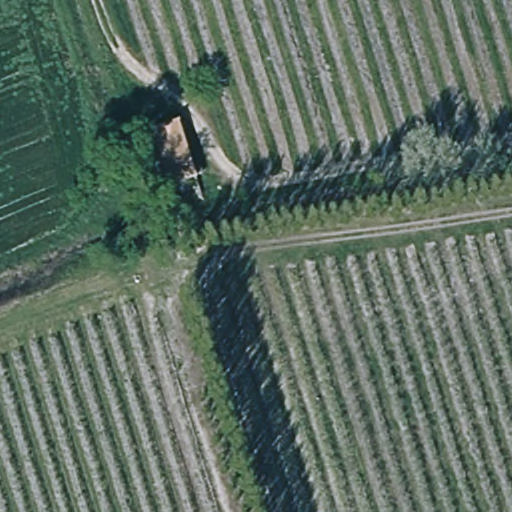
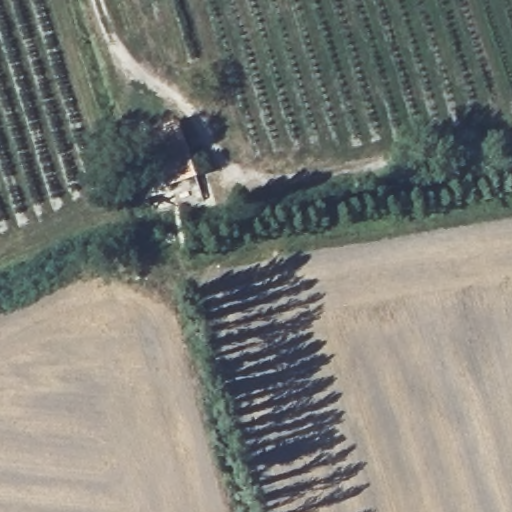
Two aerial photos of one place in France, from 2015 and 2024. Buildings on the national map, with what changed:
unchanged [(175,122),(193,176),(167,184),(149,129),(152,128),(175,122)]

